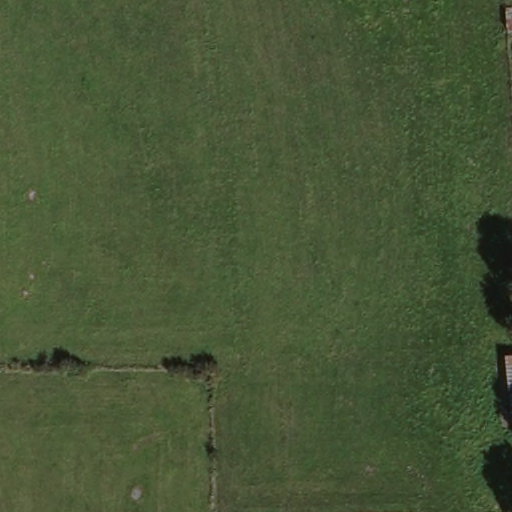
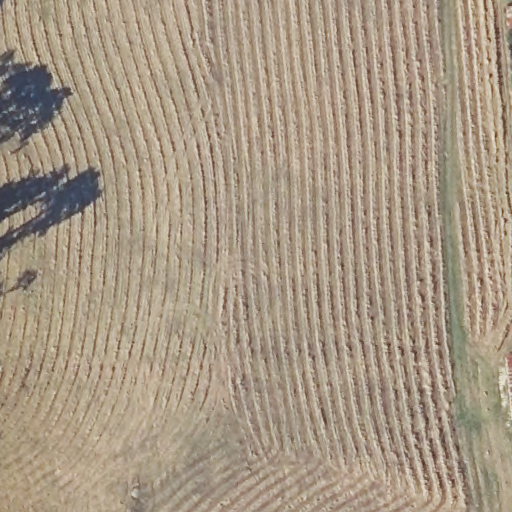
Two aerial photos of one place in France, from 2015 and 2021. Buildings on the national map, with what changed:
unchanged [(512,423),(506,425),(502,361),(512,360),(512,423)]

